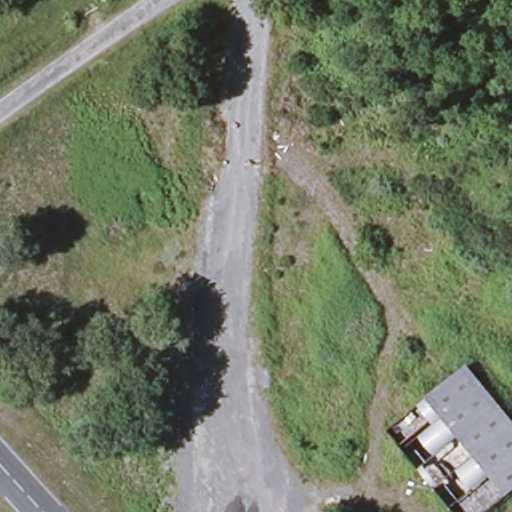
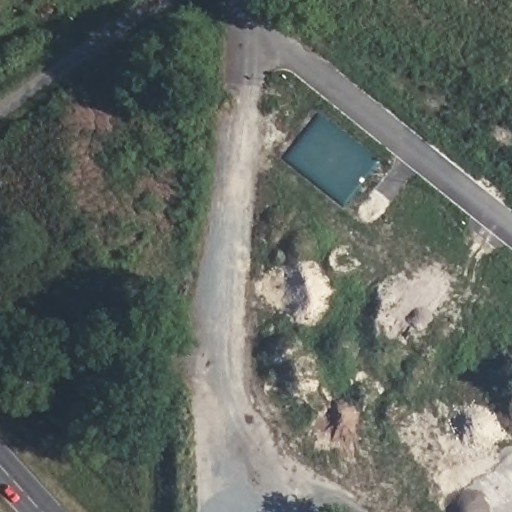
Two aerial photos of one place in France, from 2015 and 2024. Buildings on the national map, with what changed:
demolished [(466,365),(512,417),(512,494),(491,512),(461,512),(394,430),(466,365)]

